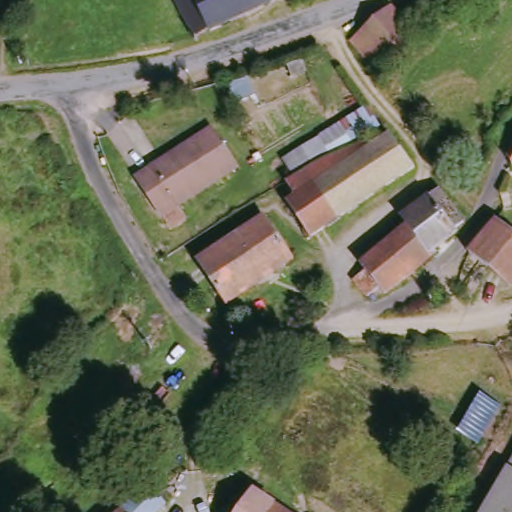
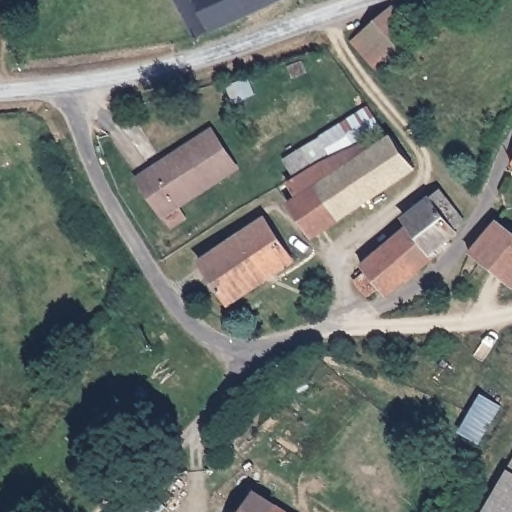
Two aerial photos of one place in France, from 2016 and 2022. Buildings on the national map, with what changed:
unchanged [(198,42),(178,0),(282,0),(198,42)]
unchanged [(395,7),(416,50),(368,73),(367,72),(348,30),(395,7)]
unchanged [(335,130),(363,109),(380,130),(381,131),(355,151),(350,151),(347,145),(335,130)]
unchanged [(235,164),(180,202),(188,215),(175,225),(165,212),(140,176),(210,128),(235,164)]
unchanged [(335,130),(347,145),(350,151),(314,164),(290,183),(278,164),(335,130)]
unchanged [(312,239),(288,205),(299,198),(290,183),(314,164),(350,151),(355,151),(373,150),(392,135),(417,165),(312,239)]
unchanged [(417,271),(385,300),(363,272),(412,231),(406,223),(440,195),(458,220),(451,228),(460,237),(417,271)]
unchanged [(268,220),(294,261),(232,305),(205,263),(268,220)]
unchanged [(512,236),(512,287),(510,288),(472,255),(500,225),(512,236)]
unchanged [(463,428),(483,392),(501,401),(481,440),(463,428)]
unchanged [(512,465),(512,469),(510,468),(512,465)]
unchanged [(512,512),(486,512),(510,468),(512,469),(512,512)]
unchanged [(168,507),(163,512),(129,512),(152,490),(168,507)]
unchanged [(277,512),(237,512),(249,494),(277,512)]

